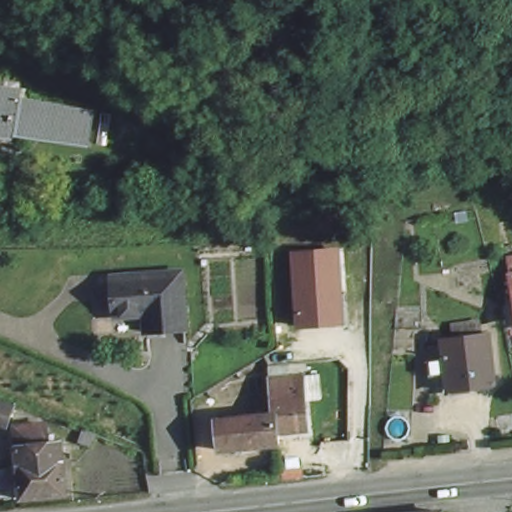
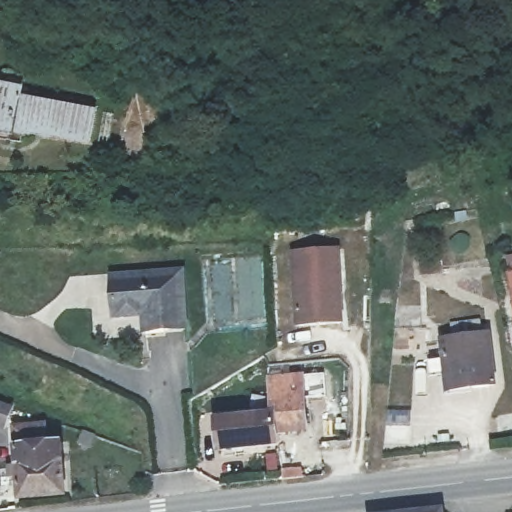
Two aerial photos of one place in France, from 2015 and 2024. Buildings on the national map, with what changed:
unchanged [(94,109),(90,144),(0,126),(0,81),(23,85),(23,97),(94,109)]
unchanged [(339,246),(346,325),(296,328),(291,250),(339,246)]
unchanged [(507,260),(512,258),(512,292),(507,260)]
unchanged [(186,320),(151,322),(148,303),(115,303),(112,273),(185,268),(186,320)]
unchanged [(493,386),(452,392),(446,342),(487,337),(493,386)]
unchanged [(313,430),(285,434),(283,448),(226,452),(223,417),(274,413),(270,371),(305,366),(313,430)]
unchanged [(17,408),(7,430),(0,427),(0,401),(17,408)]
unchanged [(18,495),(12,424),(37,421),(48,425),(50,440),(69,438),(72,491),(18,495)]

